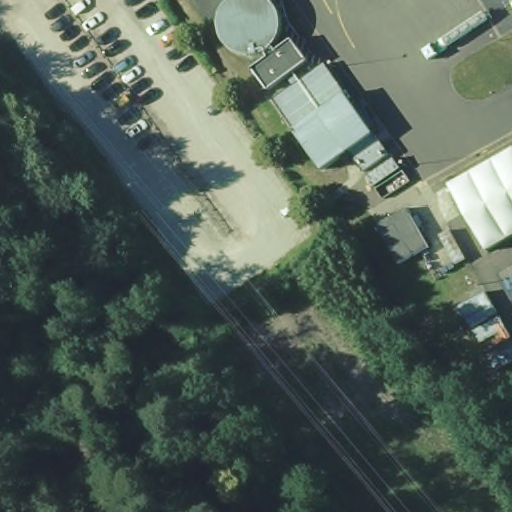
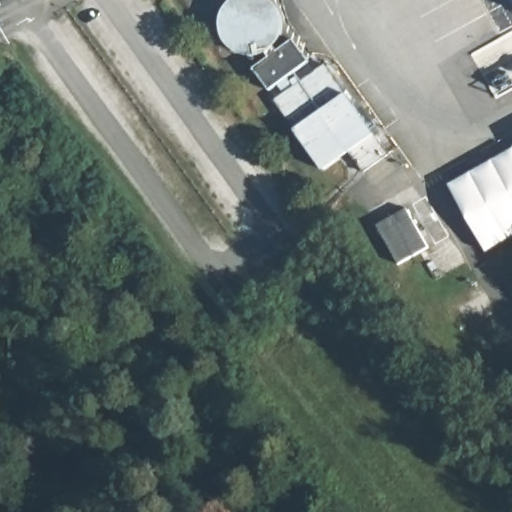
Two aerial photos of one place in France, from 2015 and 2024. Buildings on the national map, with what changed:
unchanged [(363,177),(352,160),(349,156),(324,174),(275,104),(325,68),(380,145),(388,159),(363,177)]
unchanged [(449,190),(512,152),(512,241),(486,256),(449,190)]
unchanged [(407,204),(430,244),(400,260),(378,220),(407,204)]

